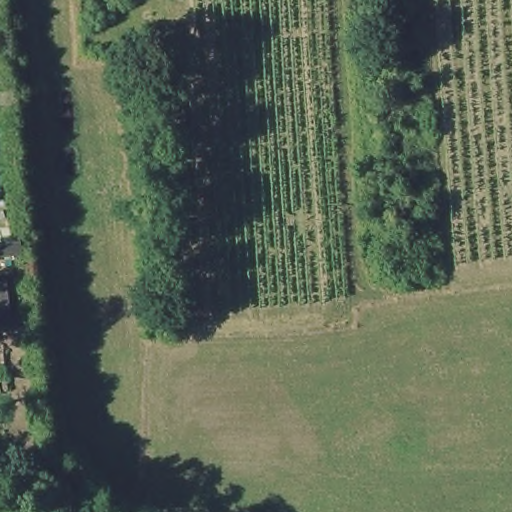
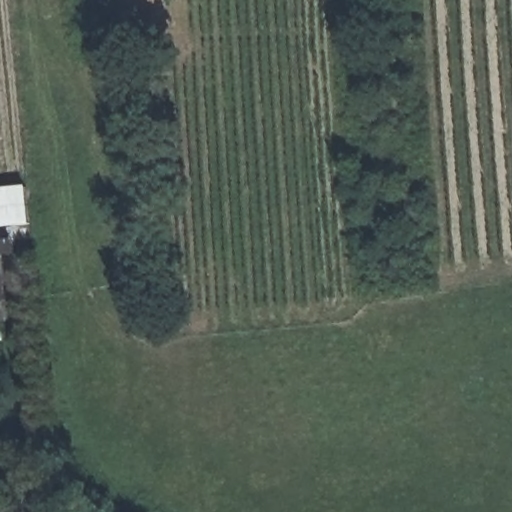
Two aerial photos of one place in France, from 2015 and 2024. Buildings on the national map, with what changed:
new [(29,186),(32,227),(0,229),(0,188),(29,186)]
new [(0,319),(0,281),(4,281),(9,319),(0,319)]

